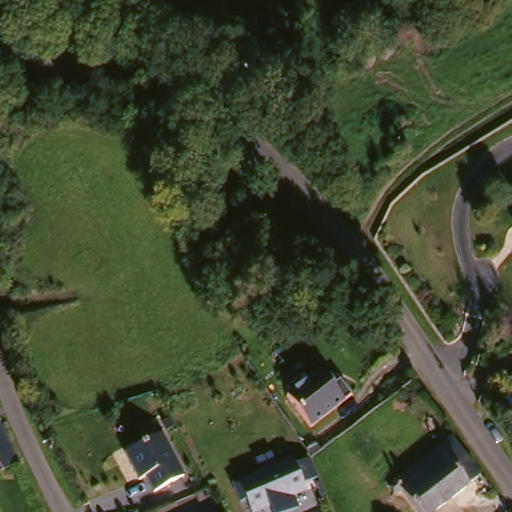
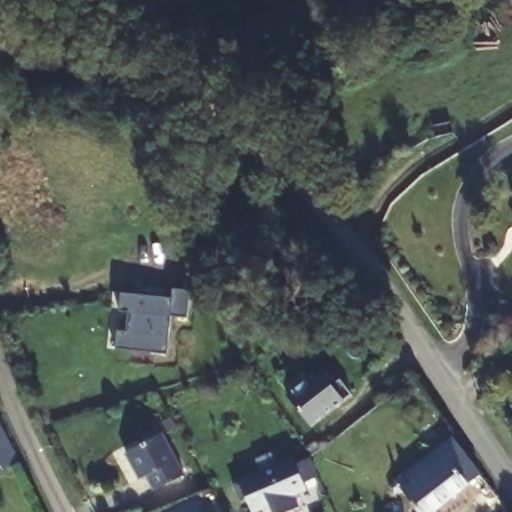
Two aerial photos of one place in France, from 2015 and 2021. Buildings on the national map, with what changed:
new [(115,329),(124,330),(127,311),(118,309),(121,291),(170,298),(172,289),(189,291),(186,318),(169,316),(164,354),(113,347),(115,329)]
unchanged [(311,426),(282,387),(303,370),(307,375),(319,366),(325,375),(329,373),(334,379),(340,377),(355,391),(311,426)]
unchanged [(0,472),(0,413),(5,411),(26,461),(0,472)]
unchanged [(187,473),(164,484),(158,470),(141,478),(125,449),(164,425),(187,473)]
unchanged [(463,427),(488,473),(442,509),(439,512),(426,512),(404,486),(413,476),(463,427)]
unchanged [(254,455),(271,448),(276,460),(290,453),(294,460),(310,454),(318,476),(303,481),(307,489),(294,494),(299,504),(284,512),(273,512),(269,505),(252,510),(247,497),(243,498),(233,480),(259,469),(254,455)]

